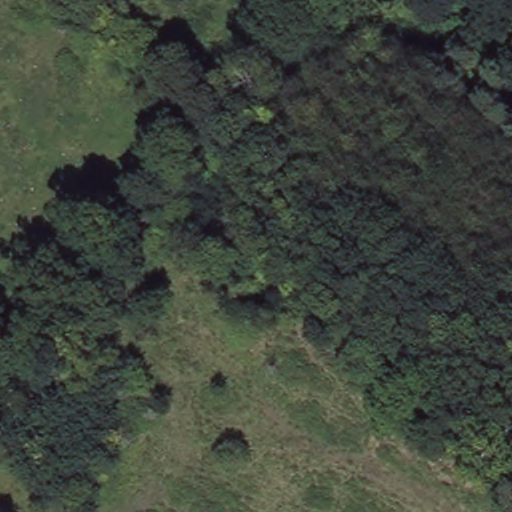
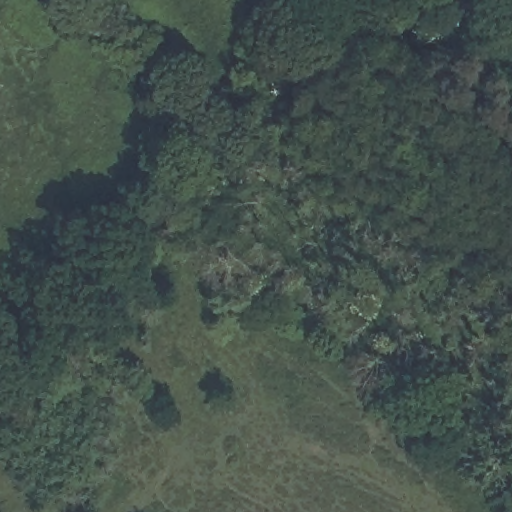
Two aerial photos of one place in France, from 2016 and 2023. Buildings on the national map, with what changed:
[]

